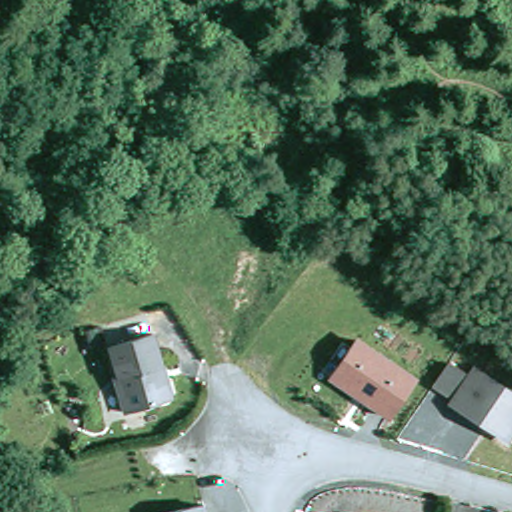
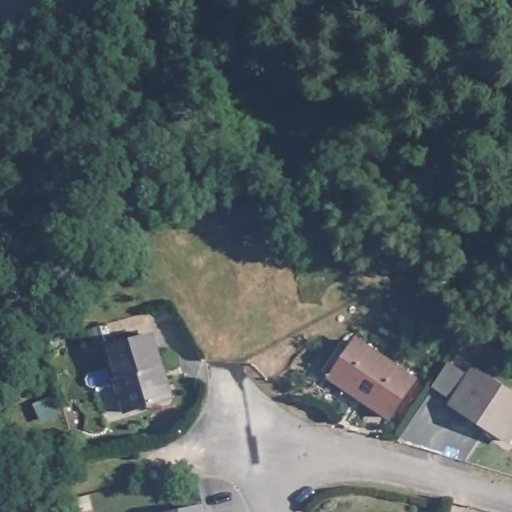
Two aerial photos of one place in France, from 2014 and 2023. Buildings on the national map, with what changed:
unchanged [(421,378),(392,420),(326,376),(355,333),(421,378)]
unchanged [(120,379),(124,378),(115,348),(158,335),(168,366),(163,367),(166,379),(173,382),(176,393),(173,399),(131,412),(120,379)]
unchanged [(477,368),(512,390),(512,432),(504,443),(449,401),(477,368)]
unchanged [(206,501),(208,512),(161,512),(206,501)]

